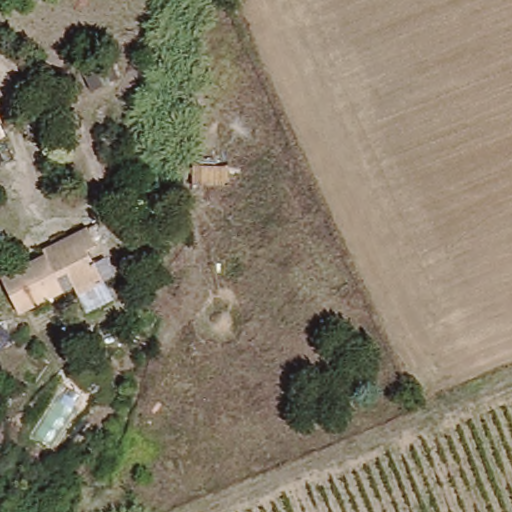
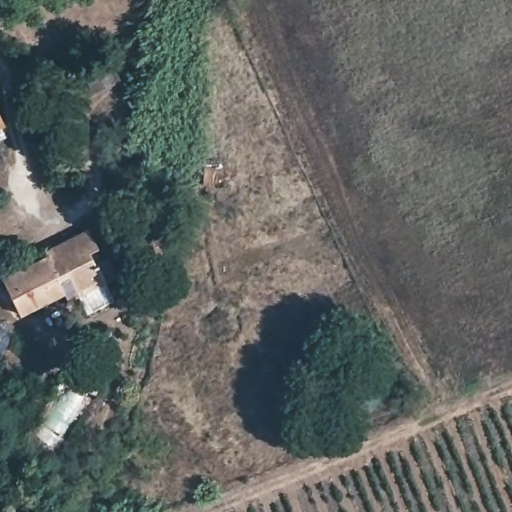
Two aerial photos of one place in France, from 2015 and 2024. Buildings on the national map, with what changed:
unchanged [(10,116),(0,122),(0,96),(10,116)]
unchanged [(194,187),(194,165),(229,164),(231,186),(194,187)]
unchanged [(2,271),(101,230),(113,253),(98,262),(109,293),(82,305),(75,292),(19,321),(2,271)]

